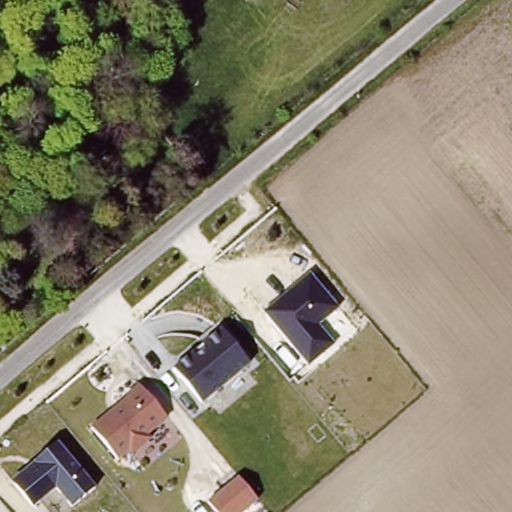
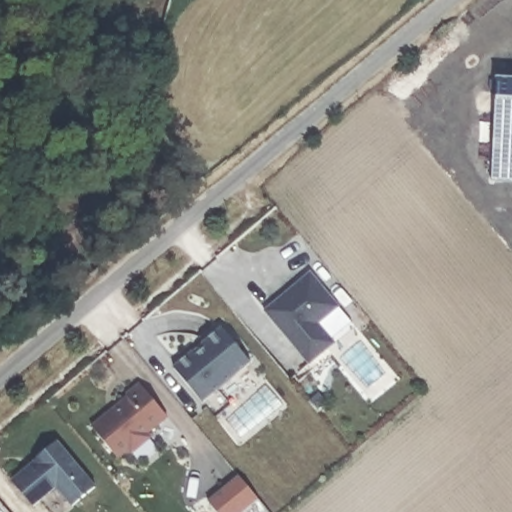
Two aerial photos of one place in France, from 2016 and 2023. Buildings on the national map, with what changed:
new [(498,77),(512,78),(512,183),(490,181),(498,77)]
unchanged [(338,304),(319,320),(335,341),(311,362),(263,307),(310,268),(338,304)]
unchanged [(251,364),(200,406),(171,367),(222,325),(251,364)]
unchanged [(168,415),(121,456),(93,425),(138,385),(168,415)]
unchanged [(94,487),(71,505),(56,486),(30,506),(11,485),(36,463),(33,458),(56,440),(94,487)]
unchanged [(258,494),(238,512),(217,512),(205,500),(237,472),(258,494)]

